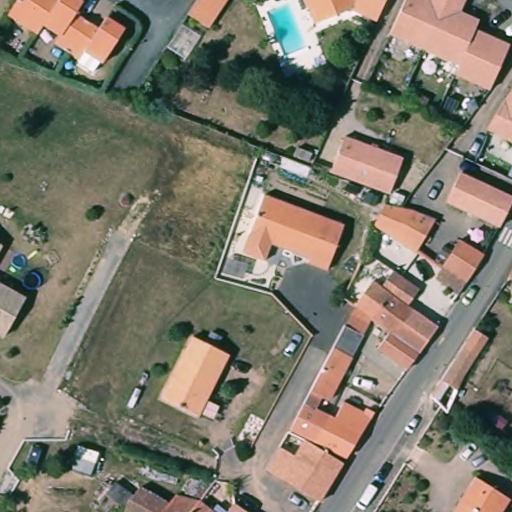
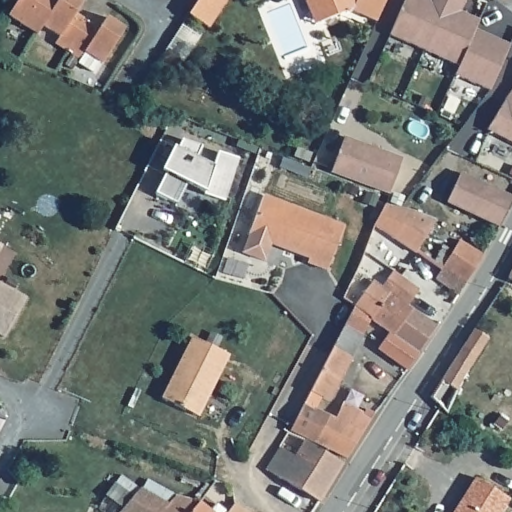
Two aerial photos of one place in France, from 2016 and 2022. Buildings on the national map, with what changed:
unchanged [(84,0),(88,2),(82,14),(104,27),(111,17),(128,28),(107,64),(90,52),(86,59),(75,51),(64,44),(67,39),(48,27),(42,36),(13,19),(24,0),(84,0)]
unchanged [(185,17),(196,0),(227,0),(207,30),(185,17)]
unchanged [(369,21),(368,23),(346,12),(320,23),(311,0),(379,0),(371,17),(369,21)]
unchanged [(457,76),(460,65),(394,35),(410,0),(470,0),(464,13),(483,20),(478,32),(511,46),(492,92),(457,76)]
unchanged [(512,89),(512,147),(481,132),(512,89)]
unchanged [(405,157),(391,192),(333,169),(348,133),(405,157)]
new [(162,171),(173,147),(177,149),(182,140),(202,146),(196,158),(213,167),(218,152),(238,158),(224,201),(204,194),(205,192),(187,183),(176,204),(155,193),(165,172),(162,171)]
unchanged [(512,207),(501,226),(449,204),(462,174),(464,175),(512,198),(512,207)]
unchanged [(418,206),(437,215),(440,216),(419,252),(375,230),(389,200),(418,206)]
unchanged [(342,231),(326,274),(304,267),(307,261),(250,240),(263,202),(342,231)]
unchanged [(443,263),(461,241),(483,256),(467,282),(460,293),(435,274),(443,263)]
unchanged [(2,246),(0,249),(0,244),(2,246)]
unchanged [(372,260),(366,270),(358,265),(364,255),(372,260)]
unchanged [(346,322),(359,306),(345,297),(362,271),(396,291),(407,275),(423,286),(409,305),(412,307),(394,330),(375,317),(362,333),(346,322)]
unchanged [(512,278),(512,281),(511,280),(512,278)]
unchanged [(28,296),(3,339),(0,337),(0,280),(28,296)]
unchanged [(412,307),(439,327),(408,370),(380,348),(394,330),(412,307)]
unchanged [(447,411),(435,399),(456,364),(480,325),(493,333),(470,375),(450,413),(447,411)]
unchanged [(311,390),(320,373),(334,347),(346,327),(364,337),(355,357),(332,400),(311,390)]
unchanged [(230,357),(200,418),(163,401),(193,338),(230,357)]
unchanged [(306,401),(332,413),(336,415),(344,402),(365,413),(368,408),(377,414),(351,454),(296,428),(306,401)]
unchanged [(295,432),(345,462),(323,500),(269,467),(292,430),(295,432)]
unchanged [(512,503),(506,512),(456,512),(477,479),(512,503)]
unchanged [(124,511),(107,498),(118,483),(137,496),(144,487),(164,500),(168,493),(206,505),(217,512),(123,512),(124,511)]
unchanged [(233,506),(242,512),(229,512),(233,506)]
unchanged [(246,510),(249,512),(245,512),(246,510)]

